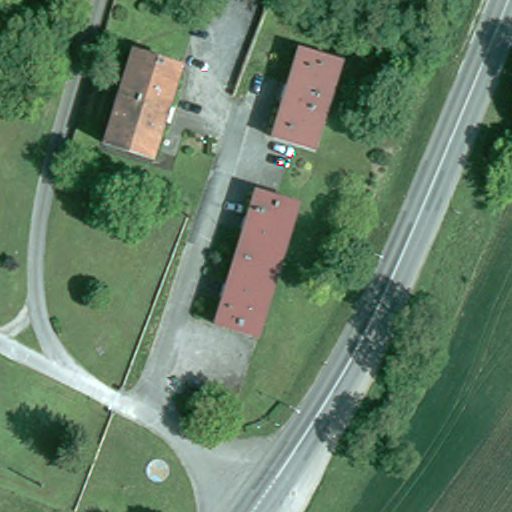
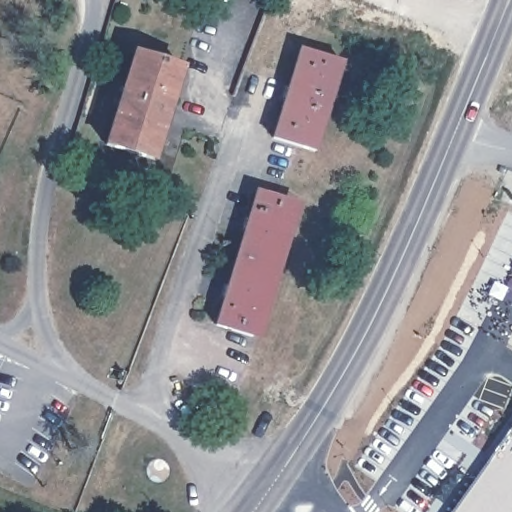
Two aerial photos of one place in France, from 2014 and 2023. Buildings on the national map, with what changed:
unchanged [(297,47),(340,59),(315,147),(272,136),(297,47)]
unchanged [(136,50),(182,64),(154,155),(107,141),(136,50)]
unchanged [(257,185),(293,196),(286,222),(293,224),(270,309),(261,307),(255,332),(218,321),(257,185)]
new [(512,428),(512,512),(455,512),(512,428)]

